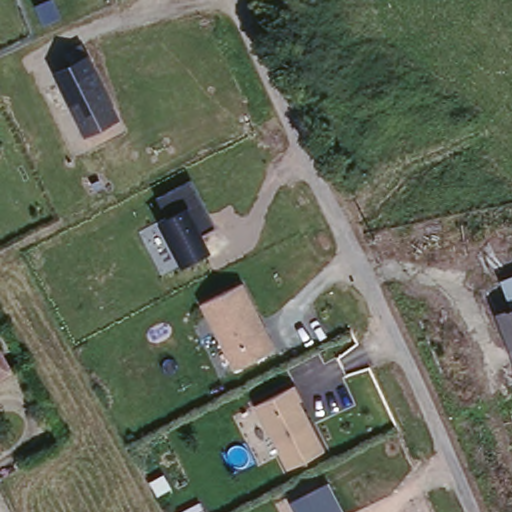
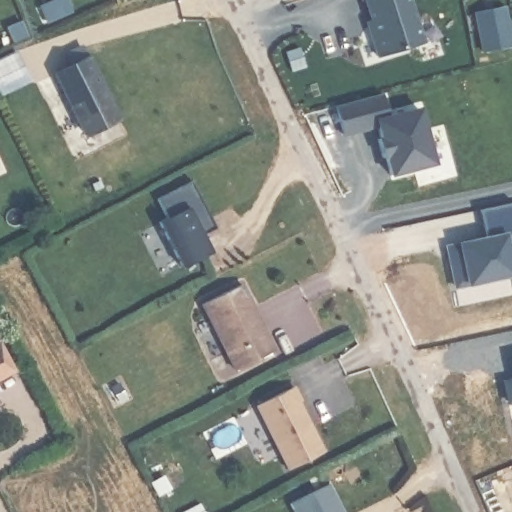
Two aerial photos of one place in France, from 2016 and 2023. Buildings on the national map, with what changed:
new [(381,56),(374,32),(378,30),(369,0),(412,0),(425,43),(381,56)]
unchanged [(74,71),(69,59),(85,51),(117,123),(85,137),(59,78),(74,71)]
new [(382,93),(387,117),(418,108),(433,164),(388,177),(373,128),(341,135),(335,106),(382,93)]
unchanged [(211,228),(199,233),(210,254),(182,268),(160,224),(166,219),(156,200),(190,184),(211,228)]
new [(483,240),(478,210),(512,203),(512,259),(506,260),(509,276),(451,289),(445,249),(483,240)]
unchanged [(244,283),(277,350),(234,373),(200,305),(244,283)]
unchanged [(0,380),(0,347),(13,373),(0,380)]
unchanged [(296,385),(304,401),(299,403),(325,453),(288,472),(254,409),(296,385)]
unchanged [(342,512),(294,512),(290,503),(329,484),(342,512)]

